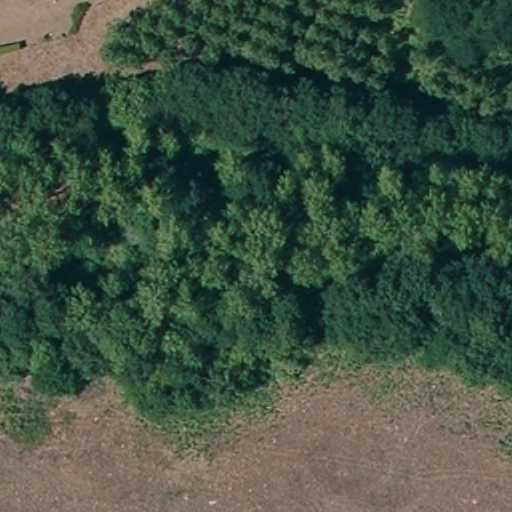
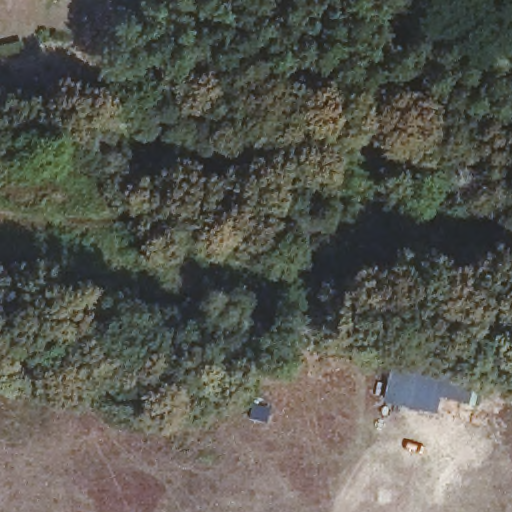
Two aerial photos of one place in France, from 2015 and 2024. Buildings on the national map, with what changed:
new [(381,400),(390,365),(471,382),(466,402),(431,392),(427,410),(381,400)]

